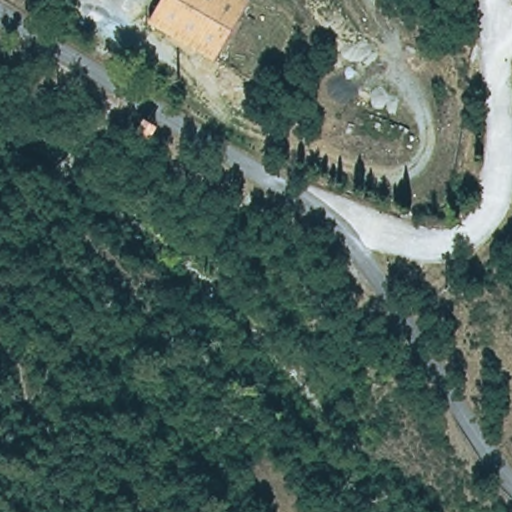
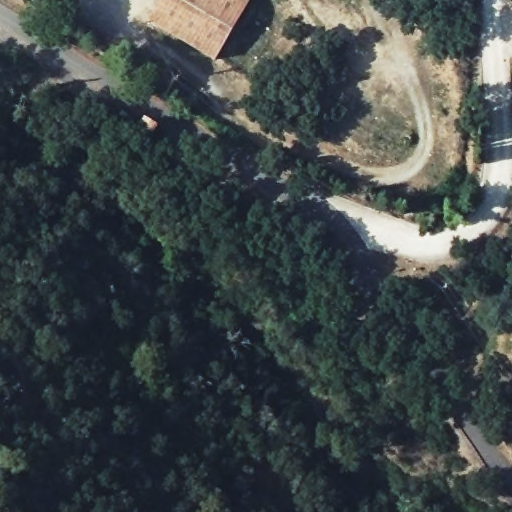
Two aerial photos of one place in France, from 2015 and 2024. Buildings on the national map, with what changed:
unchanged [(211,66),(142,27),(158,0),(249,0),(211,66)]

